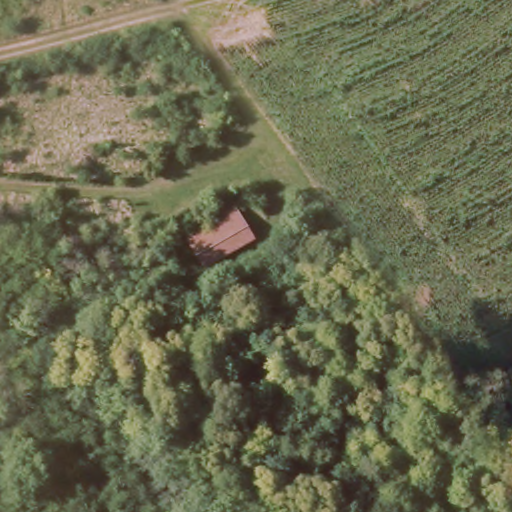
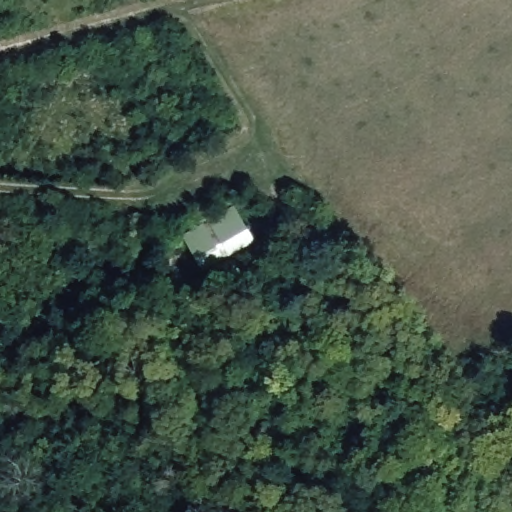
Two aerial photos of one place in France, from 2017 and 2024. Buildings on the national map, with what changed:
unchanged [(186,240),(231,212),(242,231),(199,258),(186,240)]

